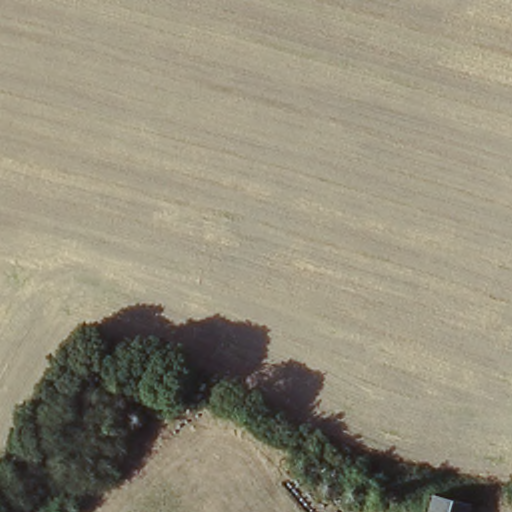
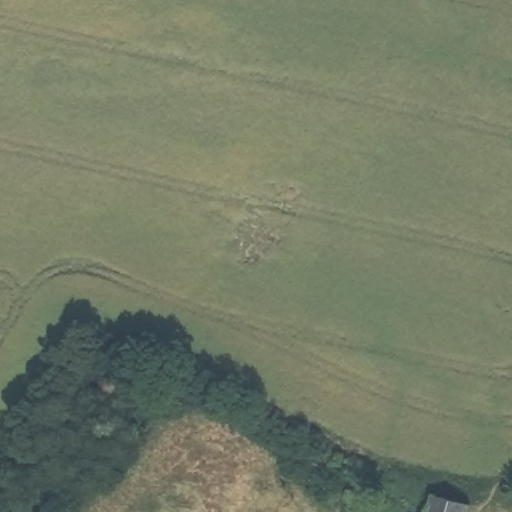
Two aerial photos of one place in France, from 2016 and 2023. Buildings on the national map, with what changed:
unchanged [(472,504),(469,512),(424,512),(430,493),(472,504)]

